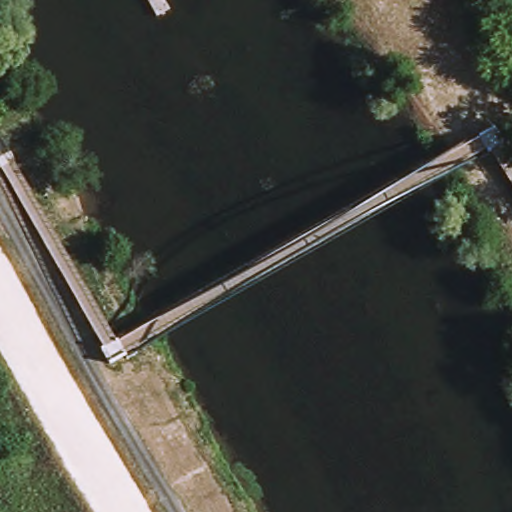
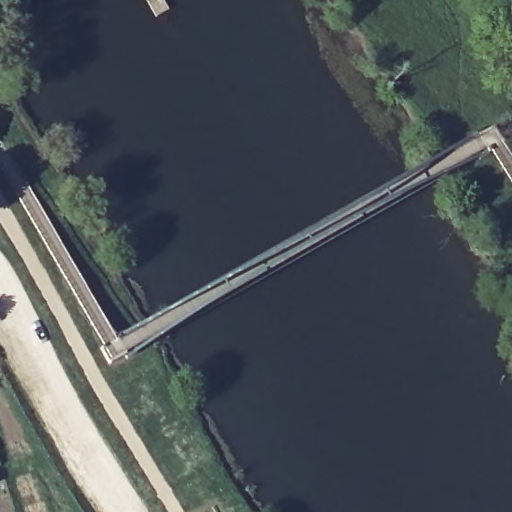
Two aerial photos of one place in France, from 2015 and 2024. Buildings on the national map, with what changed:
[]

